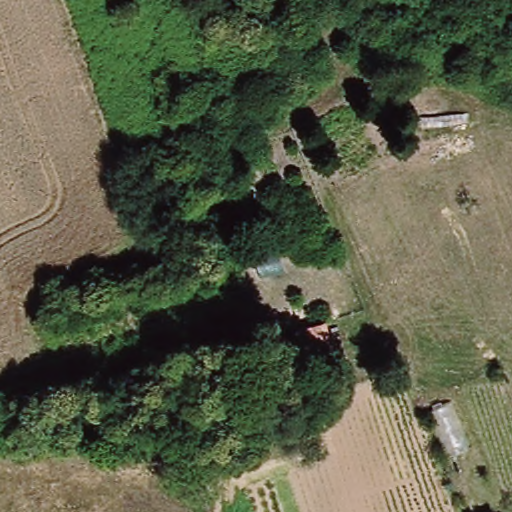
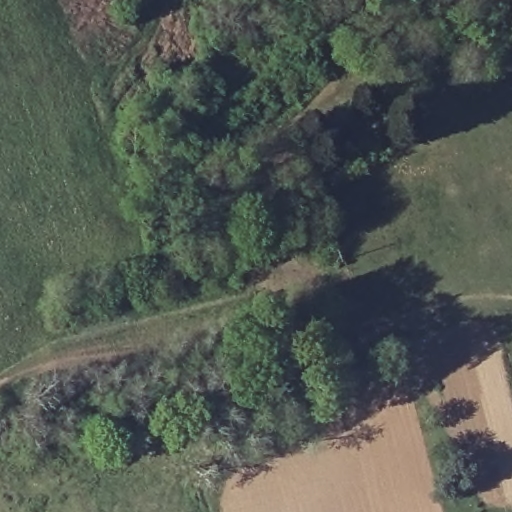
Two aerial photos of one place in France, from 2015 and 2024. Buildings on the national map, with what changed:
unchanged [(426,409),(453,399),(475,450),(445,460),(426,409)]

